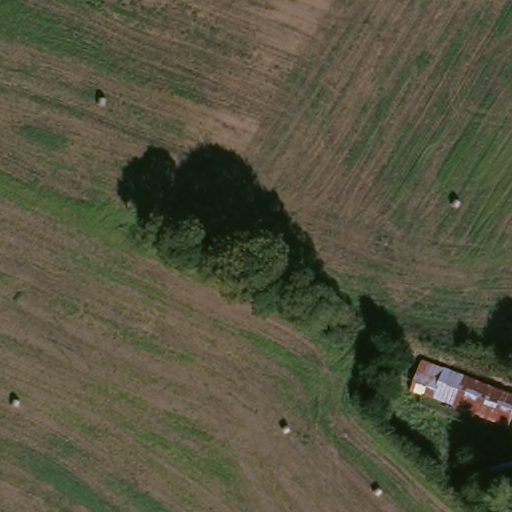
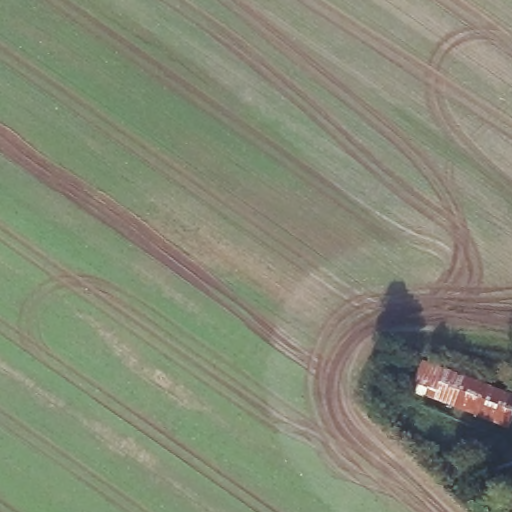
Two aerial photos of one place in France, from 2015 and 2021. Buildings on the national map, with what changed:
unchanged [(410,393),(425,362),(512,394),(512,419),(507,432),(410,393)]
unchanged [(482,468),(512,461),(512,485),(490,490),(482,468)]

